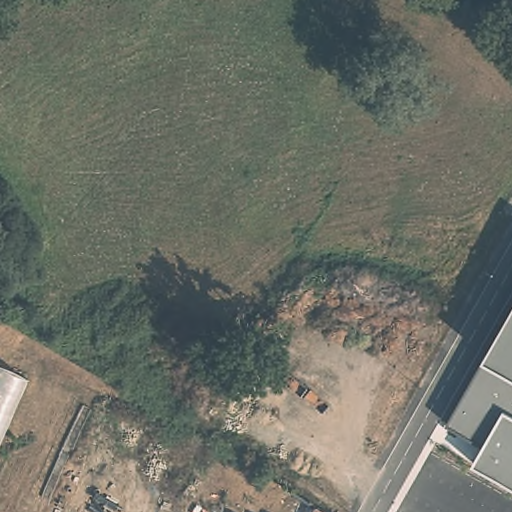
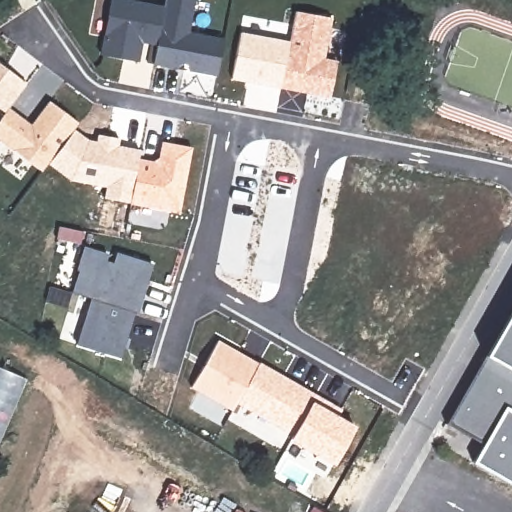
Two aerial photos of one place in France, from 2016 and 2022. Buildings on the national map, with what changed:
new [(111,0),(133,0),(165,6),(158,45),(142,42),(139,62),(101,55),(111,0)]
new [(158,45),(165,6),(166,0),(196,0),(191,33),(224,39),(218,75),(154,63),(158,45)]
new [(290,41),(295,10),(333,17),(325,59),(339,61),(332,98),(281,87),(290,41)]
new [(241,32),(290,41),(281,87),(231,79),(241,32)]
new [(5,113),(0,108),(0,62),(29,82),(10,108),(32,124),(50,100),(80,124),(42,172),(0,141),(0,120),(5,113)]
new [(139,157),(153,160),(159,157),(161,141),(193,146),(181,213),(131,205),(139,157)]
new [(91,298),(73,293),(79,271),(77,270),(84,246),(110,253),(108,261),(114,262),(116,253),(153,264),(139,312),(136,311),(121,358),(77,345),(91,298)]
unchanged [(482,443),(446,422),(483,356),(512,305),(512,485),(471,462),(482,443)]
new [(220,340),(317,393),(295,435),(239,402),(234,411),(192,388),(220,340)]
unchanged [(0,440),(0,366),(26,379),(0,440)]

